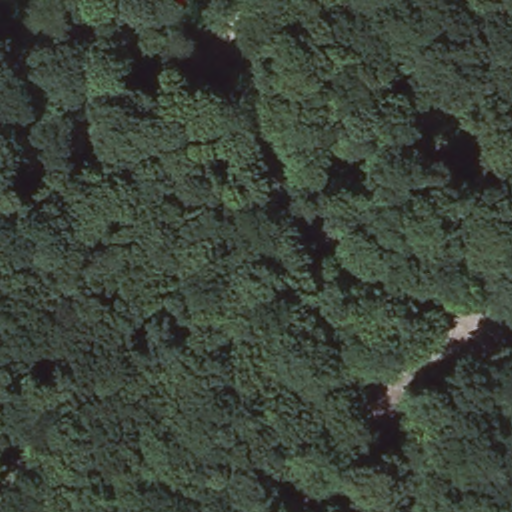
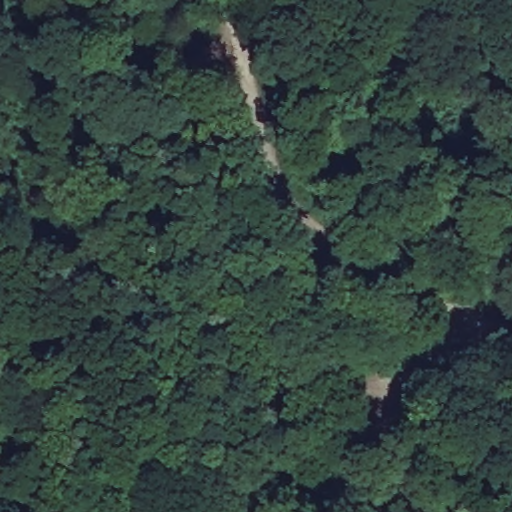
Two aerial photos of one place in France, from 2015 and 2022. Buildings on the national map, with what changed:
unchanged [(287,304),(285,318),(272,326),(255,317),(247,304),(255,289),(272,284),(282,294),(287,304)]

